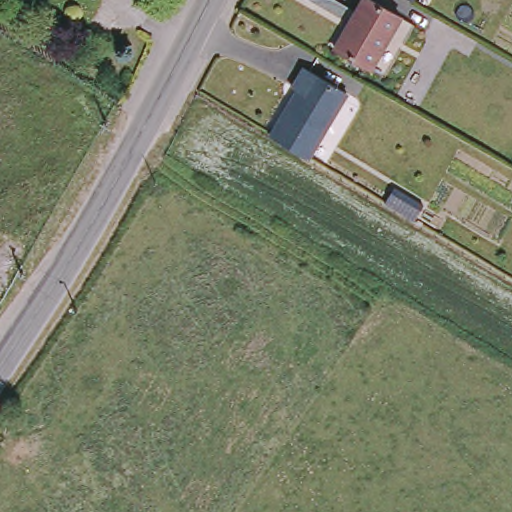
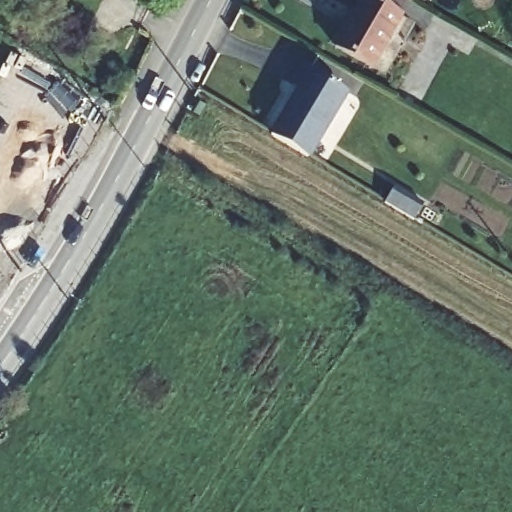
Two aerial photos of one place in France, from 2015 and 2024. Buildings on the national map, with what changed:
unchanged [(400,20),(370,73),(334,53),(363,0),(364,0),(400,20)]
unchanged [(292,90),(287,88),(300,67),(342,93),(304,156),(267,136),(265,135),(292,90)]
unchanged [(390,190),(420,208),(412,222),(380,205),(390,190)]

